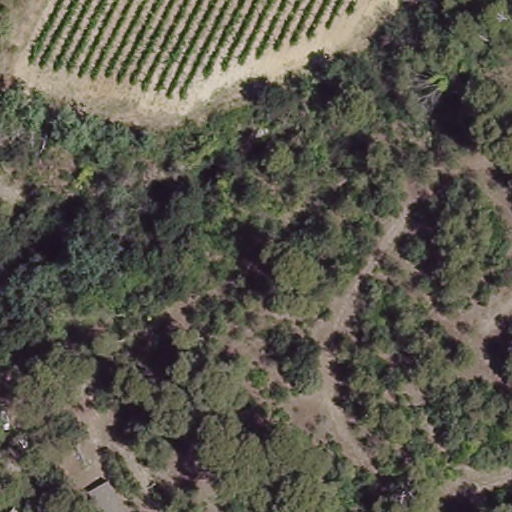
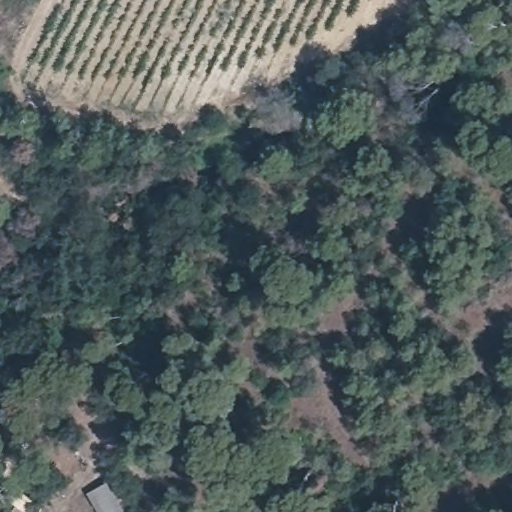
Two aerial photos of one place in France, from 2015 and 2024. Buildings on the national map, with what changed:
unchanged [(122,512),(89,512),(82,495),(106,486),(122,512)]

